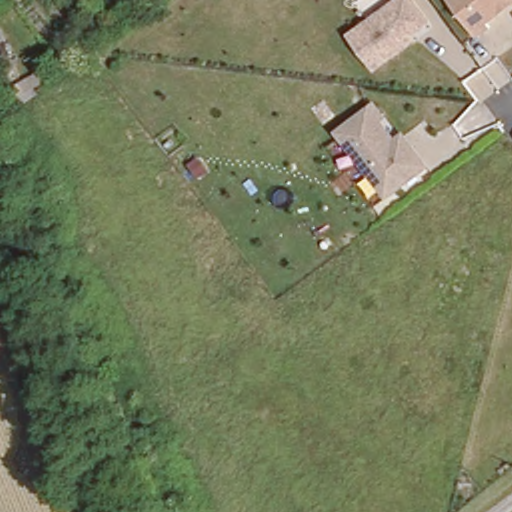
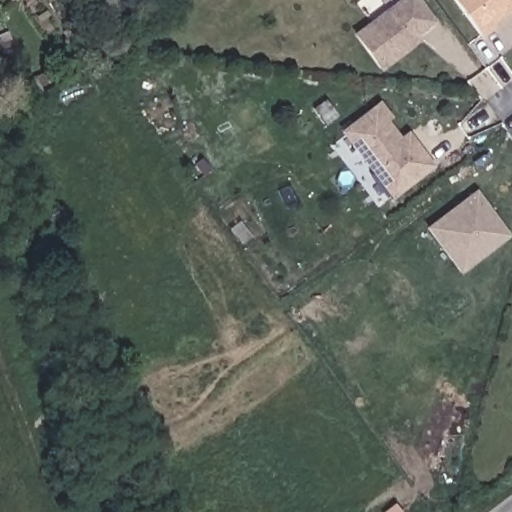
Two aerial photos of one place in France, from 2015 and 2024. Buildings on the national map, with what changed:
unchanged [(398,0),(420,0),(435,19),(417,33),(422,39),(380,72),(351,35),(398,0)]
unchanged [(493,22),(495,26),(480,36),(454,0),(512,0),(512,8),(493,22)]
unchanged [(390,115),(387,118),(399,134),(405,131),(431,166),(391,198),(340,132),(379,99),(390,115)]
new [(457,273),(425,231),(473,195),(505,237),(457,273)]

